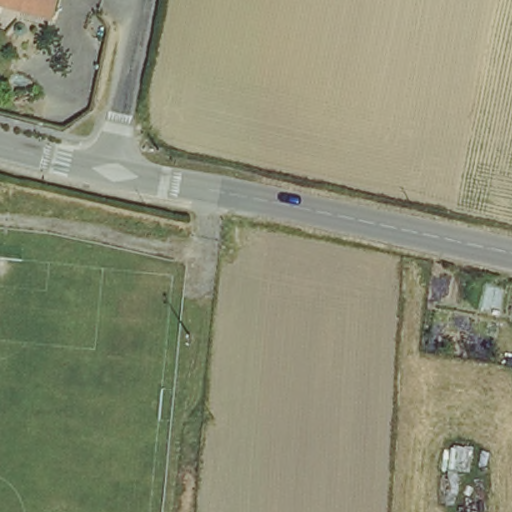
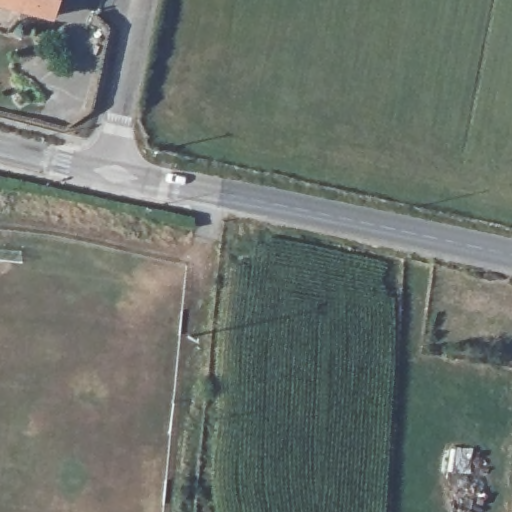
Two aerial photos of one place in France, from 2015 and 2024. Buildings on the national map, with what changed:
unchanged [(13,13),(13,5),(0,2),(0,0),(51,0),(47,19),(13,13)]

